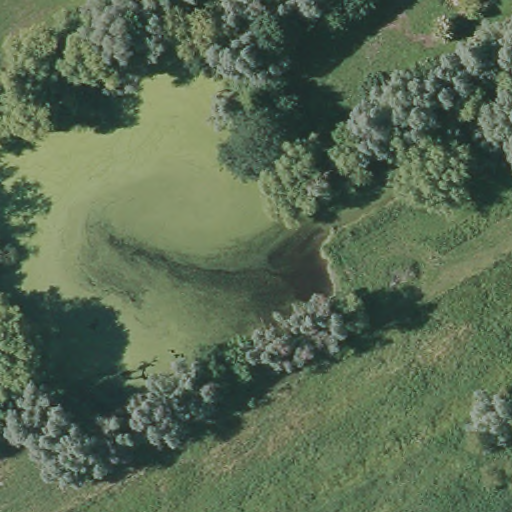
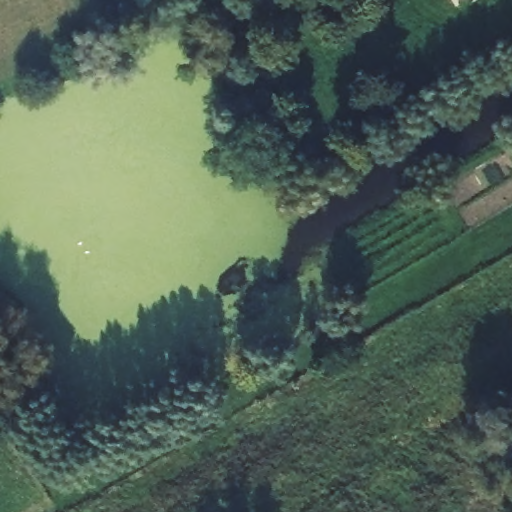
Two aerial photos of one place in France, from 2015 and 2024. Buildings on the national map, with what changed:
unchanged [(323,26),(370,0),(416,0),(333,45),(323,26)]
unchanged [(472,27),(457,0),(497,0),(502,10),(472,27)]

